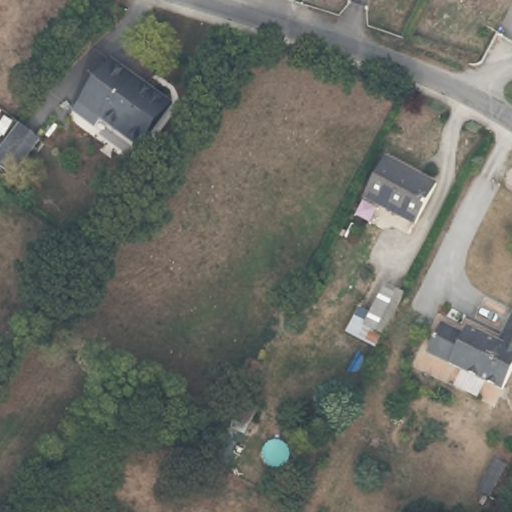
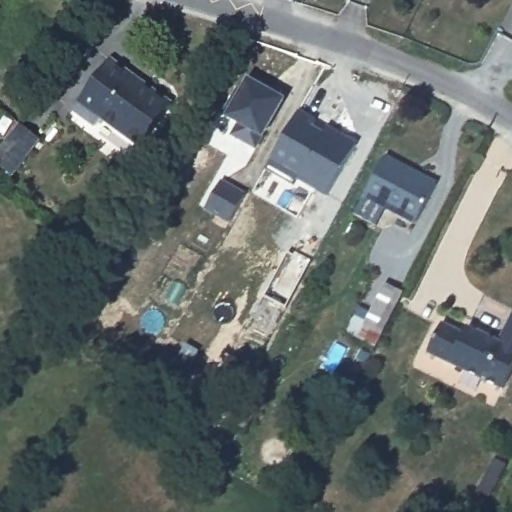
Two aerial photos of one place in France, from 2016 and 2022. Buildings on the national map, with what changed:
unchanged [(166,107),(135,152),(95,122),(91,128),(69,111),(106,61),(166,107)]
new [(249,77),(254,71),(282,89),(279,94),(285,98),(263,138),(255,148),(230,134),(238,123),(226,116),(249,77)]
new [(357,141),(327,197),(297,179),(294,184),(266,169),(300,108),(317,118),(313,124),(323,130),(327,124),(357,141)]
unchanged [(23,153),(13,168),(0,158),(0,139),(18,115),(31,126),(39,133),(23,153)]
unchanged [(435,183),(415,224),(365,199),(385,158),(435,183)]
new [(246,192),(229,223),(204,209),(222,179),(246,192)]
new [(286,308),(265,297),(288,250),(309,262),(286,308)]
unchanged [(353,308),(369,315),(388,280),(404,289),(376,344),(358,336),(342,328),(353,308)]
unchanged [(433,353),(448,324),(470,335),(473,328),(486,335),(468,371),(433,353)]
unchanged [(505,344),(512,331),(512,382),(507,392),(468,371),(486,335),(505,344)]
unchanged [(232,427),(246,434),(232,460),(218,454),(232,427)]

